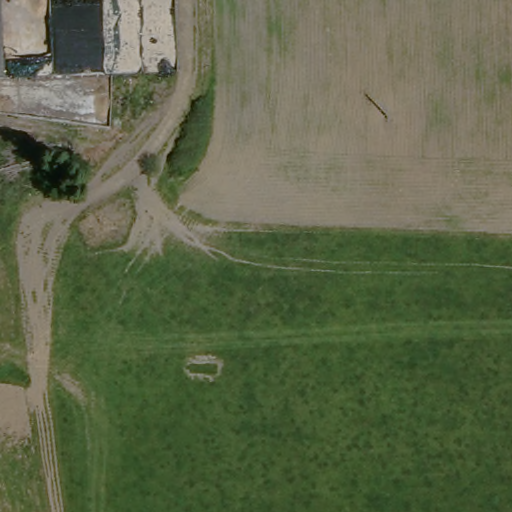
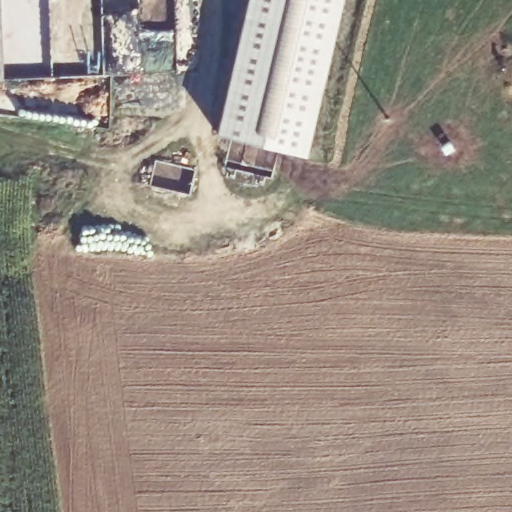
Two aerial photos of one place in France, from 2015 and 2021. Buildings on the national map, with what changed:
new [(254,0),(346,0),(310,157),(222,137),(254,0)]

